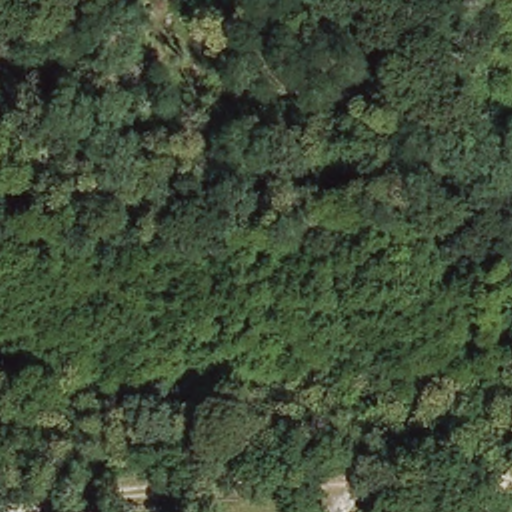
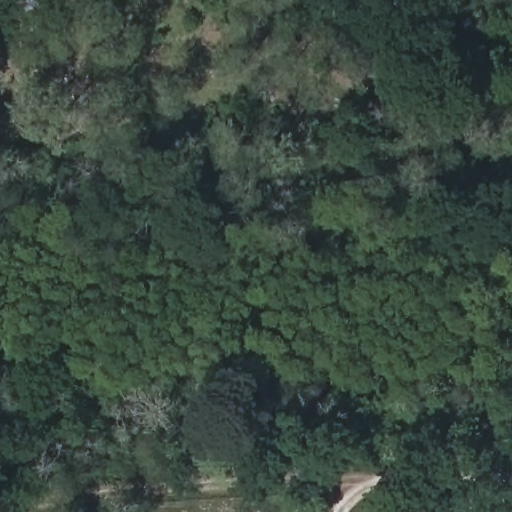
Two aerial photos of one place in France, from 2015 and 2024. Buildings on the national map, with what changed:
[]

